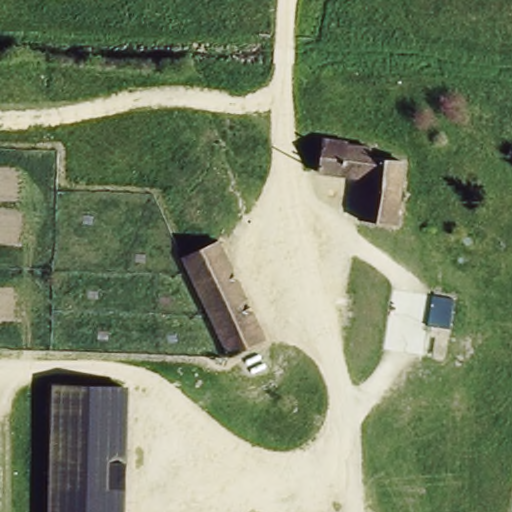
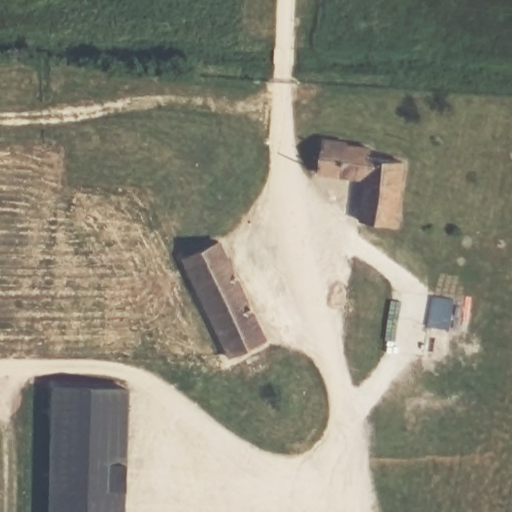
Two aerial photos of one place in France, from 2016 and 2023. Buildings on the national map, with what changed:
unchanged [(320,170),(323,138),(346,141),(363,144),(381,146),(380,156),(398,160),(392,221),(356,217),(360,175),(343,173),(320,170)]
unchanged [(182,252),(223,245),(265,341),(226,359),(178,253),(182,252)]
unchanged [(121,512),(47,512),(50,380),(123,381),(121,512)]

